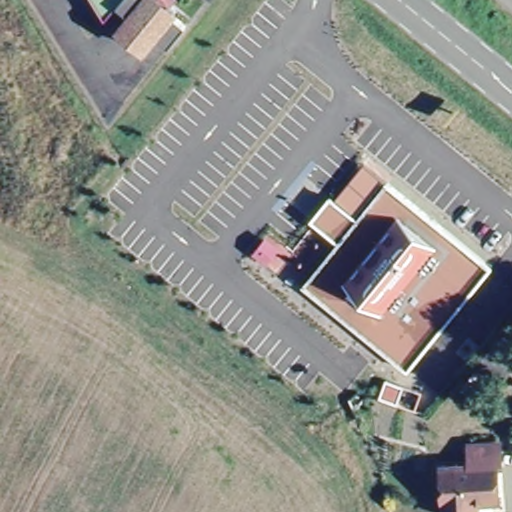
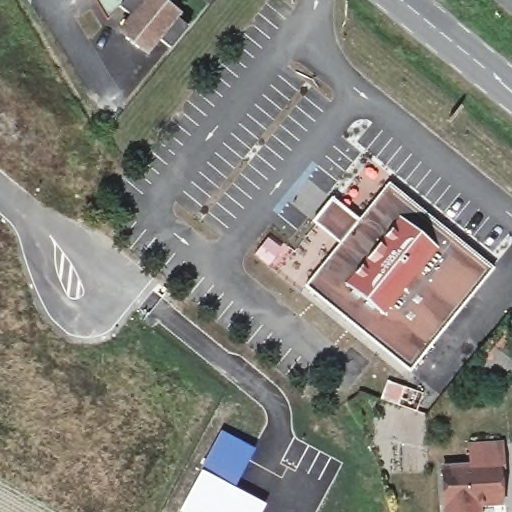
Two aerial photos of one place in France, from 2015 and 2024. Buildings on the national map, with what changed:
unchanged [(176,17),(190,28),(172,50),(159,39),(147,54),(122,33),(134,19),(121,9),(109,23),(98,0),(162,0),(179,14),(176,17)]
unchanged [(341,242),(320,224),(315,218),(334,196),(337,199),(368,164),(391,184),(341,242)]
unchanged [(491,269),(405,369),(305,284),(307,281),(341,242),(391,184),(491,269)]
demolished [(320,224),(341,242),(307,281),(287,264),(320,224)]
new [(221,430),(254,448),(235,486),(201,468),(221,430)]
unchanged [(471,509),(447,512),(442,462),(471,458),(470,438),(502,434),(505,458),(500,459),(503,496),(480,498),(480,508),(471,509)]
new [(201,468),(235,486),(265,503),(260,512),(181,512),(178,511),(201,468)]

